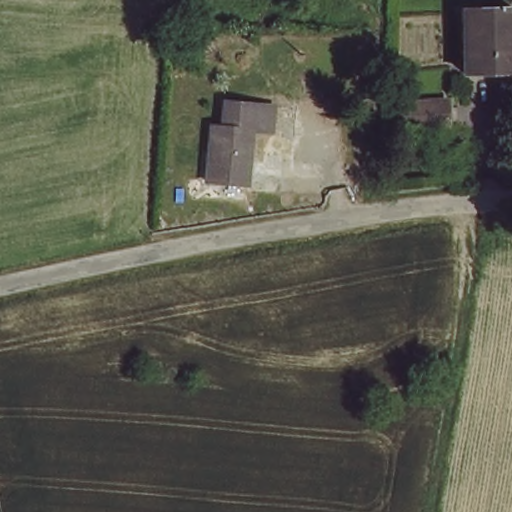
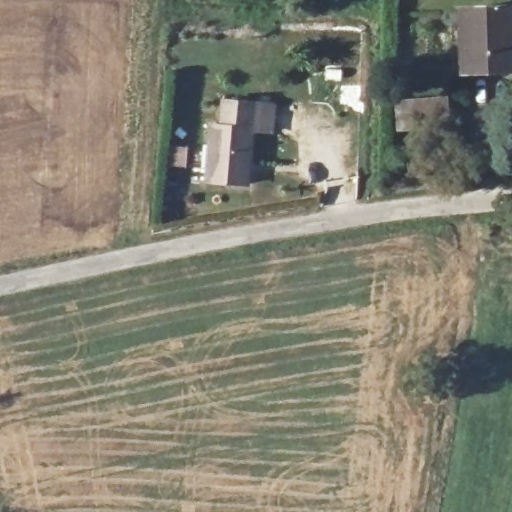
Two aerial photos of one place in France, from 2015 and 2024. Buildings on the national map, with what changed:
unchanged [(512,5),(512,70),(463,71),(460,6),(512,5)]
unchanged [(217,192),(217,178),(208,177),(210,120),(223,120),(224,97),(277,99),(276,126),(254,125),(252,180),(251,193),(217,192)]
unchanged [(449,100),(450,125),(408,127),(407,101),(449,100)]

